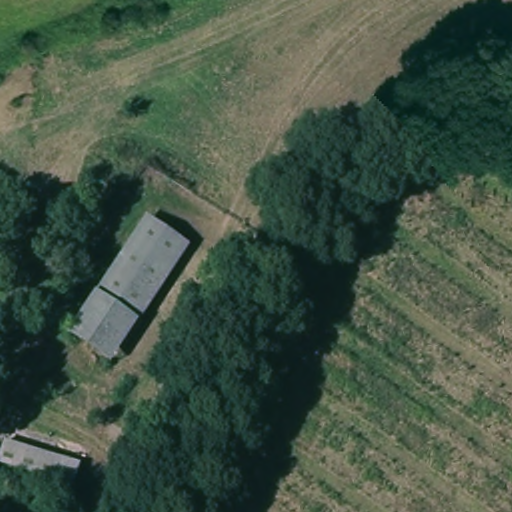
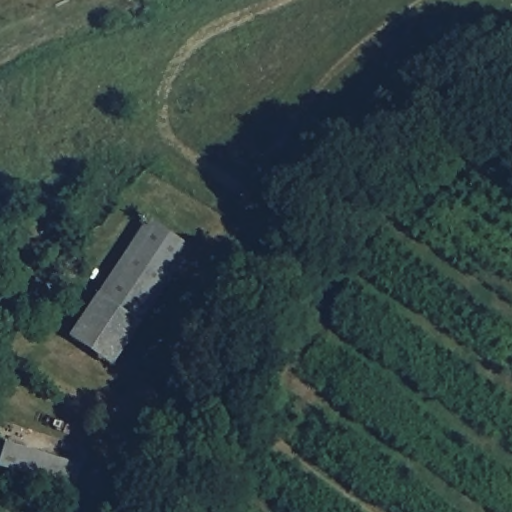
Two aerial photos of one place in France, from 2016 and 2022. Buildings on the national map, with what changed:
unchanged [(190,249),(114,363),(70,337),(148,219),(190,249)]
unchanged [(72,498),(0,465),(0,459),(8,439),(82,473),(72,498)]

